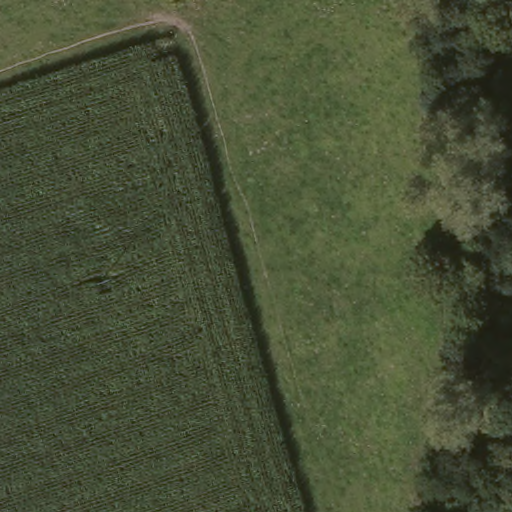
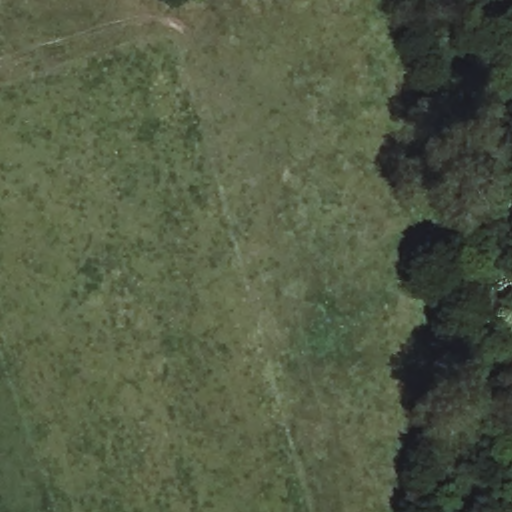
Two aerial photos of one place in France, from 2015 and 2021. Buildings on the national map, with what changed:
[]

